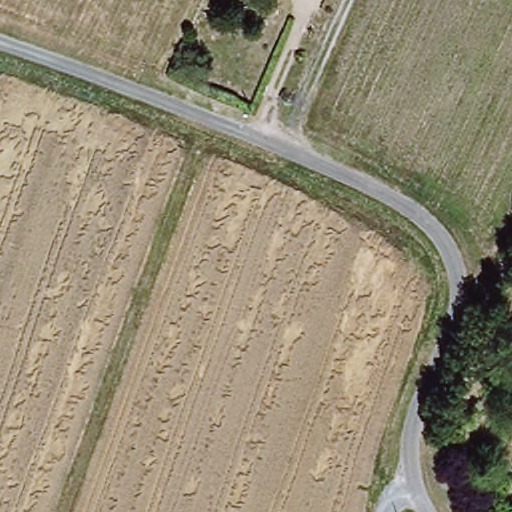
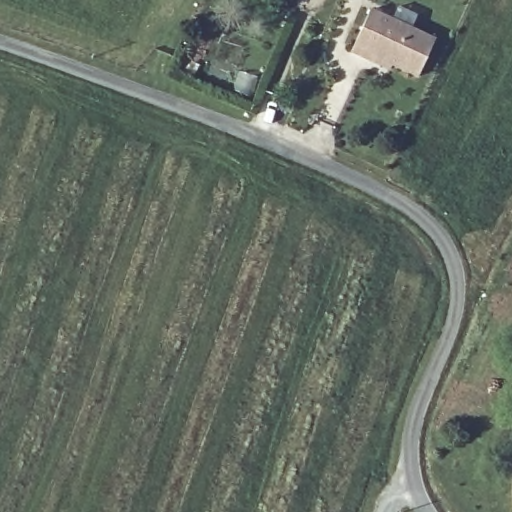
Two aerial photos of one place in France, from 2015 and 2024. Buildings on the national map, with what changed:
new [(435,38),(418,78),(392,66),(390,71),(349,53),(370,9),(435,38)]

